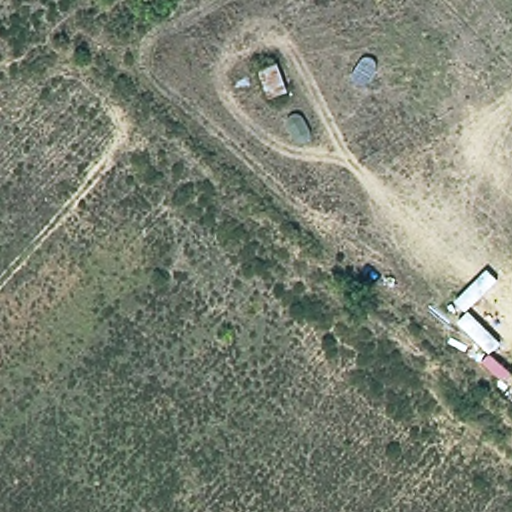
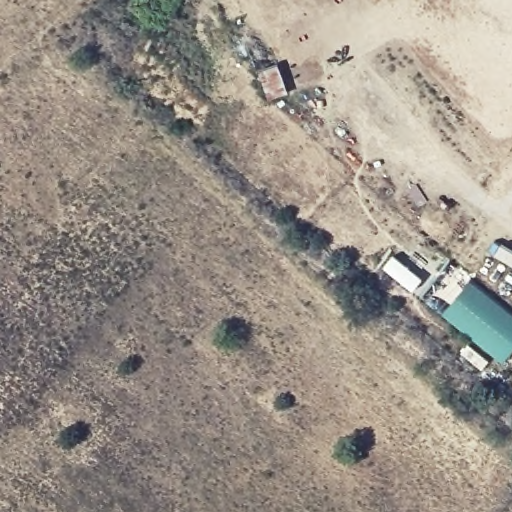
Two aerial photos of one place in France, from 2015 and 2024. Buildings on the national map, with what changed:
unchanged [(280,65),(285,93),(270,99),(257,70),(280,65)]
new [(447,263),(512,315),(512,352),(502,364),(420,298),(447,263)]

